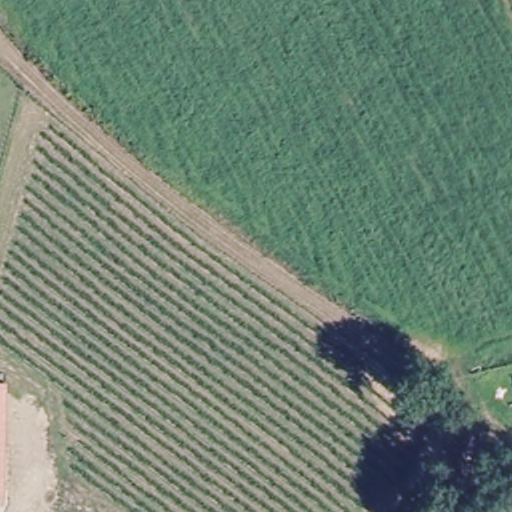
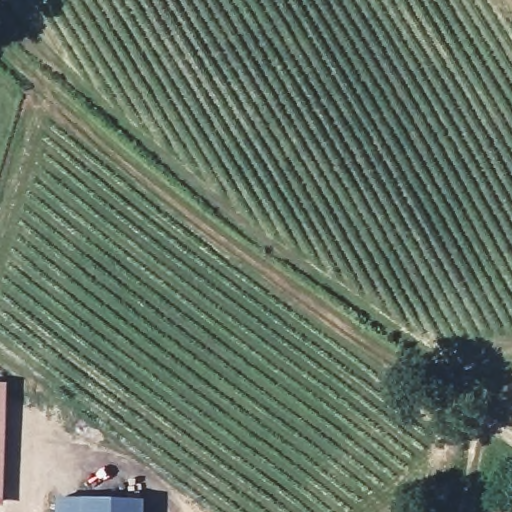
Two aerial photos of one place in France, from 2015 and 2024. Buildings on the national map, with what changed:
unchanged [(4,504),(0,504),(0,383),(7,383),(4,504)]
new [(145,512),(58,512),(59,499),(145,501),(145,512)]

